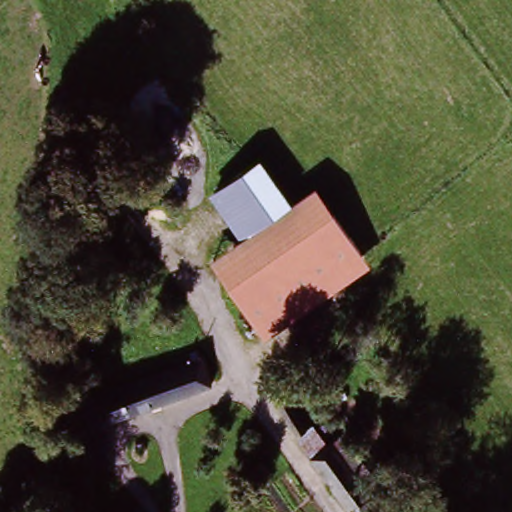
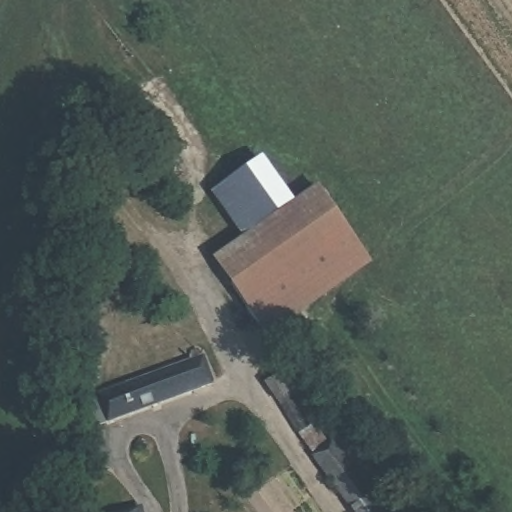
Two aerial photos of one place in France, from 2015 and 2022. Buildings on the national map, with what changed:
unchanged [(242,232),(212,187),(260,156),(290,200),(242,232)]
unchanged [(314,182),(368,266),(282,323),(220,247),(242,232),(290,200),(314,182)]
unchanged [(209,385),(116,416),(106,388),(199,357),(209,385)]
unchanged [(263,384),(283,368),(297,387),(290,394),(311,421),(316,418),(332,437),(340,431),(375,478),(348,501),(263,384)]
unchanged [(348,501),(375,478),(383,473),(413,512),(356,512),(348,501)]
unchanged [(135,509),(136,512),(122,512),(135,509)]

